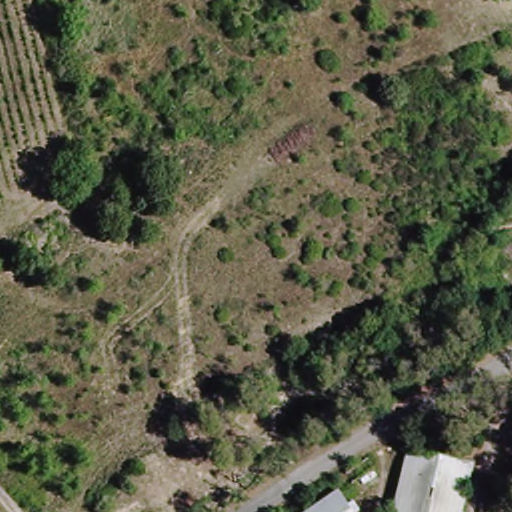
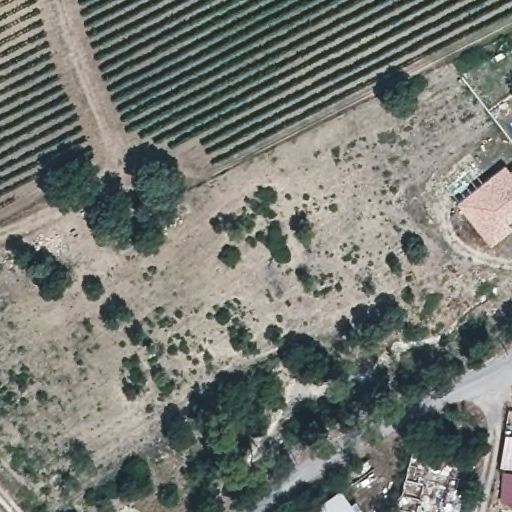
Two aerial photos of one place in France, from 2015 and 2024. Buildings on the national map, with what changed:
new [(508,171),(512,168),(512,218),(505,224),(510,230),(488,247),(461,224),(455,204),(504,165),(508,171)]
new [(504,441),(512,441),(512,465),(502,465),(504,441)]
unchanged [(458,512),(392,512),(408,444),(471,458),(458,512)]
new [(500,504),(503,476),(512,477),(512,505),(500,504)]
unchanged [(356,512),(309,512),(341,490),(356,512)]

